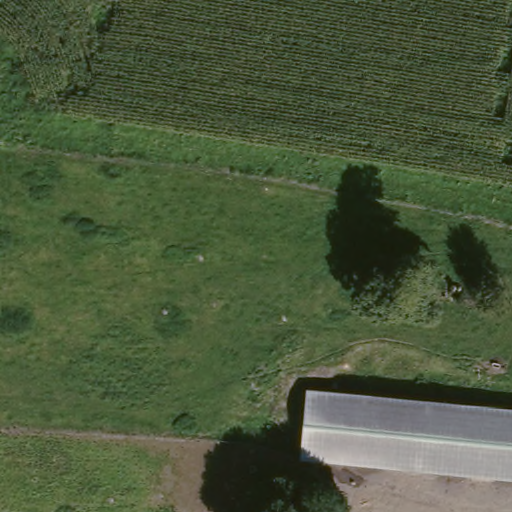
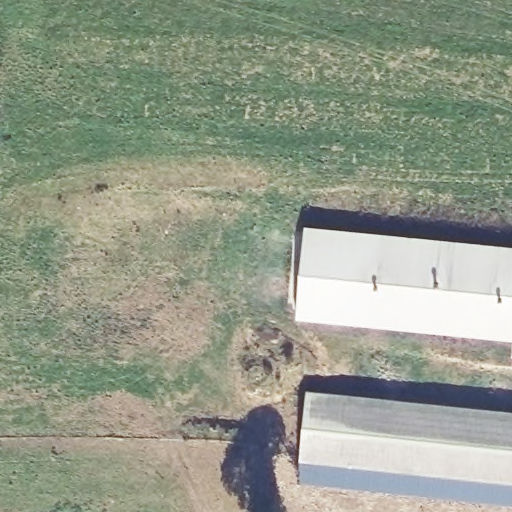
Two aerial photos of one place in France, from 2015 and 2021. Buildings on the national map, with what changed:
new [(304,226),(512,245),(512,338),(296,318),(304,226)]
unchanged [(512,407),(512,476),(300,456),(308,387),(512,407)]

